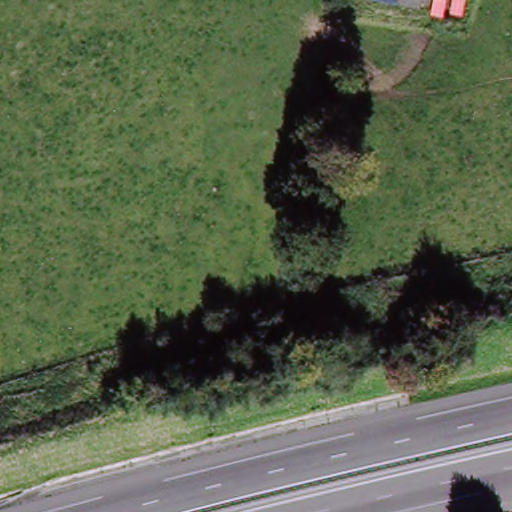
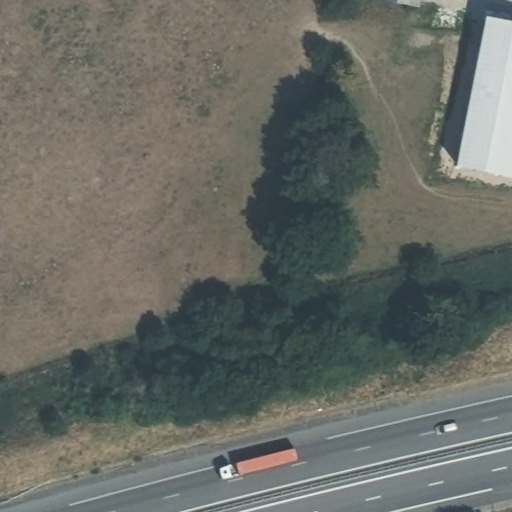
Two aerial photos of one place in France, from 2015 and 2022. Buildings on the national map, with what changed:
unchanged [(413,8),(373,0),(414,0),(413,8)]
new [(512,21),(512,176),(463,165),(488,15),(512,21)]

